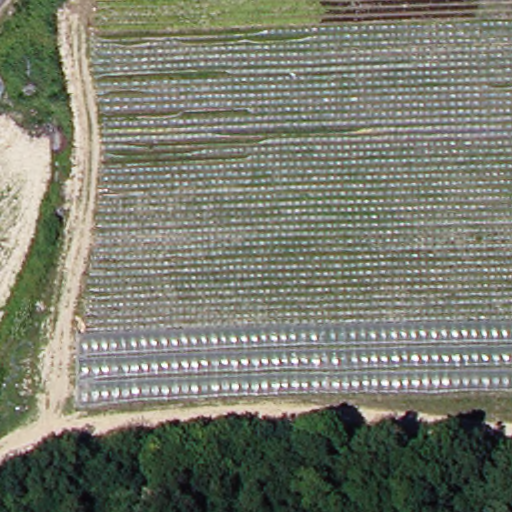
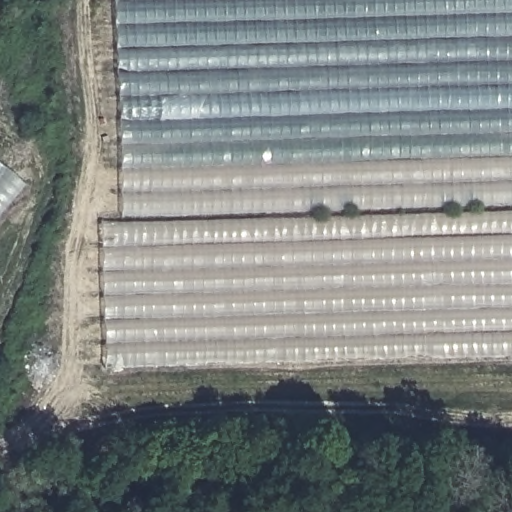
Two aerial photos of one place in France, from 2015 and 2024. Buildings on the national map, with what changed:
new [(101,222),(122,222),(115,0),(512,0),(512,356),(105,368),(101,222)]
new [(26,182),(0,214),(0,160),(26,182)]

